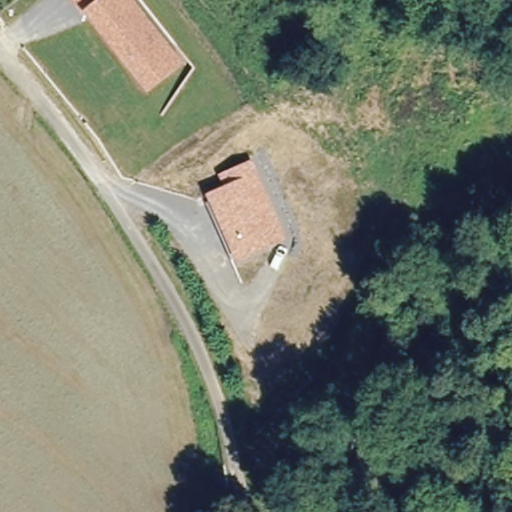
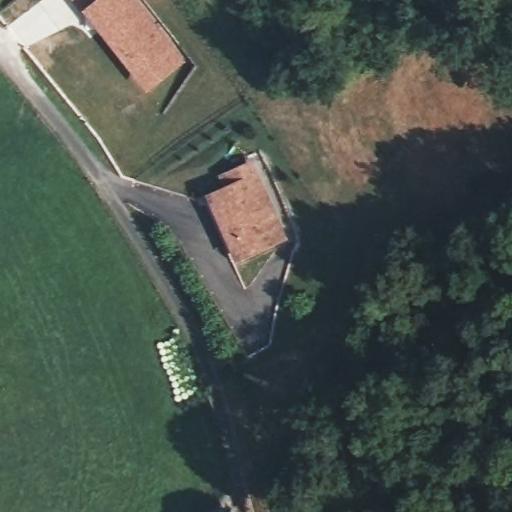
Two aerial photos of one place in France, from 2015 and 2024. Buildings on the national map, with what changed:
unchanged [(177,64),(149,86),(105,30),(91,12),(87,15),(75,0),(127,0),(177,64)]
unchanged [(205,194),(224,186),(219,174),(253,160),(287,241),(235,262),(205,194)]

